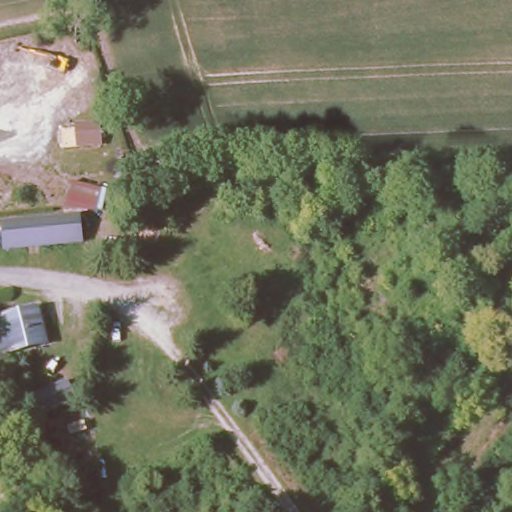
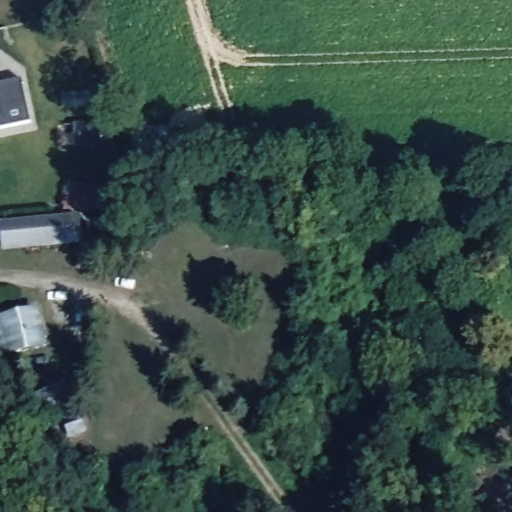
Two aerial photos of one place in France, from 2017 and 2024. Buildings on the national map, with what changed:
new [(30,122),(0,129),(0,84),(20,80),(30,122)]
demolished [(89,191),(97,180),(120,197),(112,207),(89,191)]
unchanged [(0,241),(0,218),(84,214),(85,235),(0,241)]
unchanged [(0,353),(0,323),(38,310),(49,343),(1,357),(0,353)]

